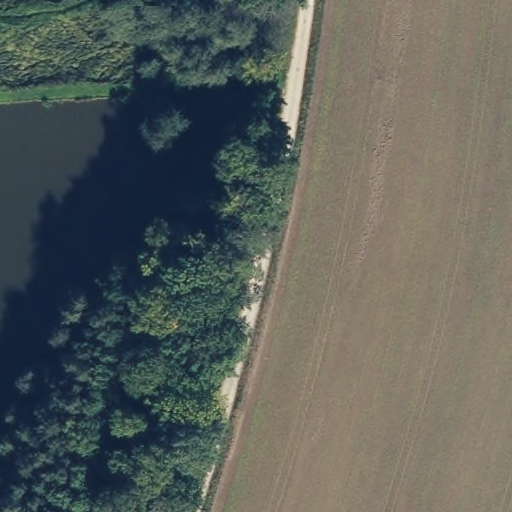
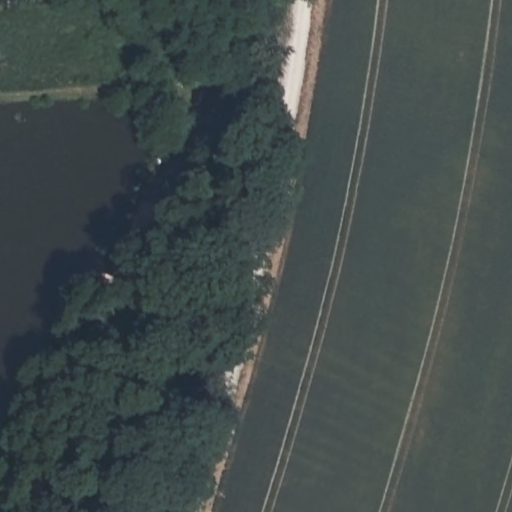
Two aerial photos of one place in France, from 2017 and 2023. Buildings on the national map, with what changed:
unchanged [(222,117),(213,148),(190,135),(201,110),(222,117)]

